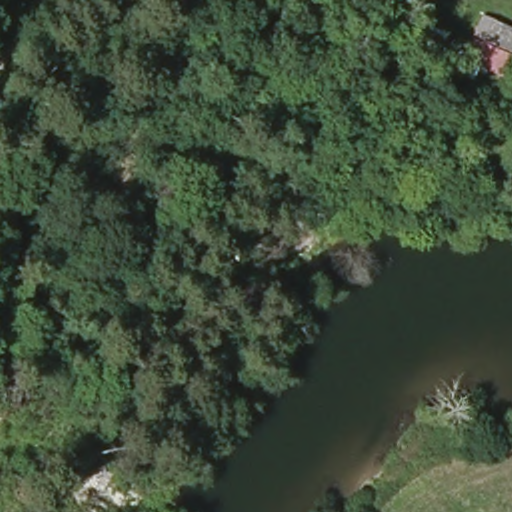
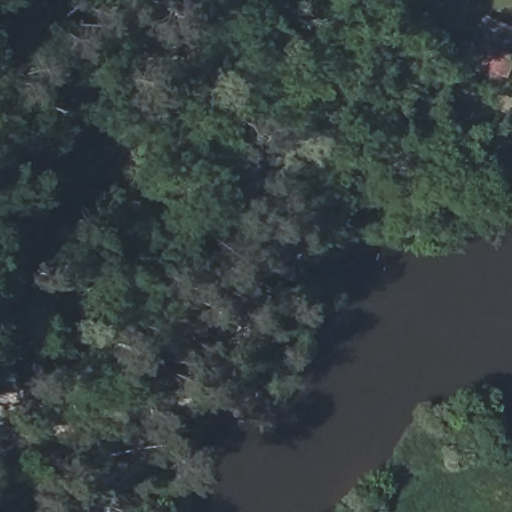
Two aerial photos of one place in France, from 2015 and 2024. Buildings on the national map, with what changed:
unchanged [(505,77),(465,61),(483,13),(512,27),(512,60),(505,77)]

